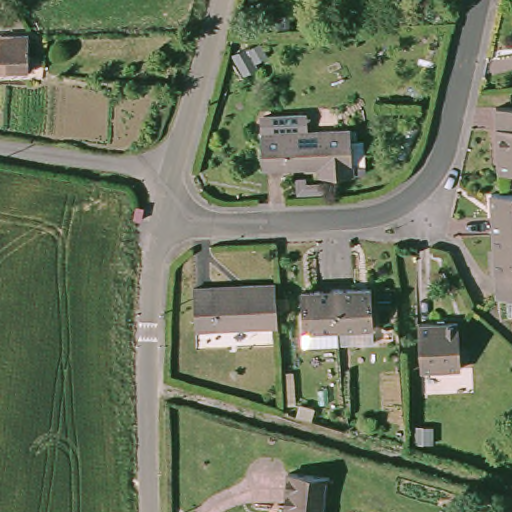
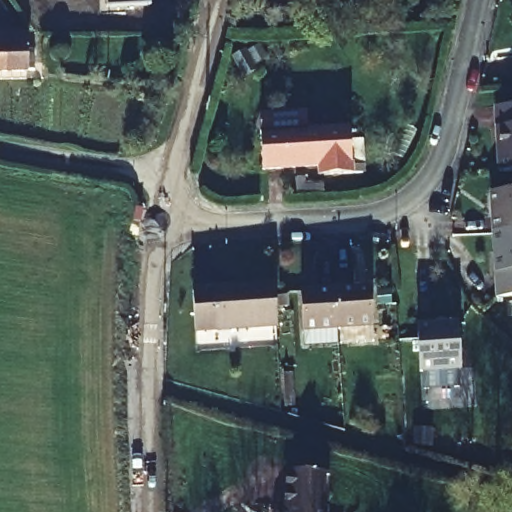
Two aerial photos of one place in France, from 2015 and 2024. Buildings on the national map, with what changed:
new [(107,0),(150,0),(150,5),(107,7),(107,0)]
unchanged [(249,4),(250,0),(260,0),(259,4),(249,4)]
unchanged [(1,34),(1,35),(28,34),(29,55),(34,55),(34,70),(0,71),(0,35),(1,34)]
unchanged [(248,51),(260,44),(267,57),(254,63),(248,51)]
unchanged [(496,106),(512,105),(512,171),(499,172),(496,106)]
unchanged [(258,174),(256,138),(263,137),(261,123),(298,121),(298,135),(345,133),(346,145),(357,145),(359,170),(348,171),(348,179),(326,180),(314,180),(314,171),(258,174)]
unchanged [(488,232),(486,192),(512,191),(512,296),(492,297),(488,232)]
unchanged [(278,325),(196,330),(193,288),(274,283),(278,325)]
unchanged [(374,341),(341,343),(341,328),(338,328),(336,289),(371,287),(374,341)]
unchanged [(303,330),(301,291),(336,289),(338,328),(303,330)]
unchanged [(461,368),(421,371),(418,325),(458,322),(461,368)]
unchanged [(274,511),(284,511),(287,471),(328,473),(325,512),(273,512),(274,511)]

